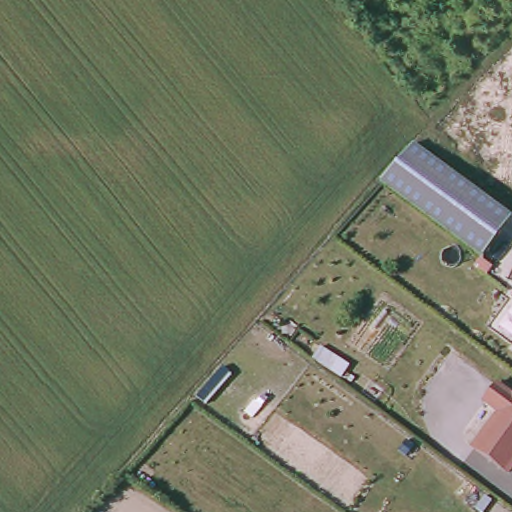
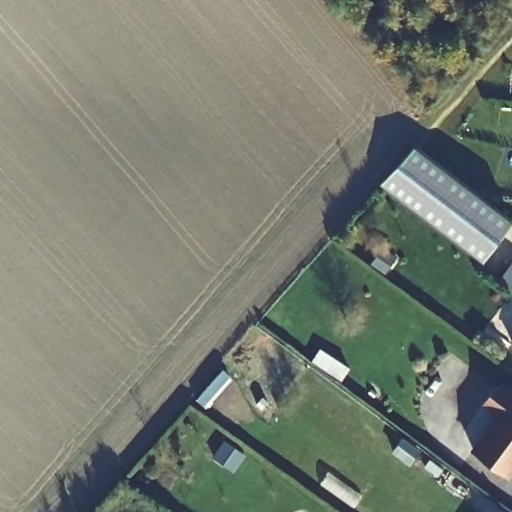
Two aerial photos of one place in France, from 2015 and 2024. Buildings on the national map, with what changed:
unchanged [(512,220),(481,262),(381,183),(414,145),(512,220)]
unchanged [(498,412),(483,401),(495,384),(512,396),(512,466),(507,474),(472,449),(495,416),(498,412)]

